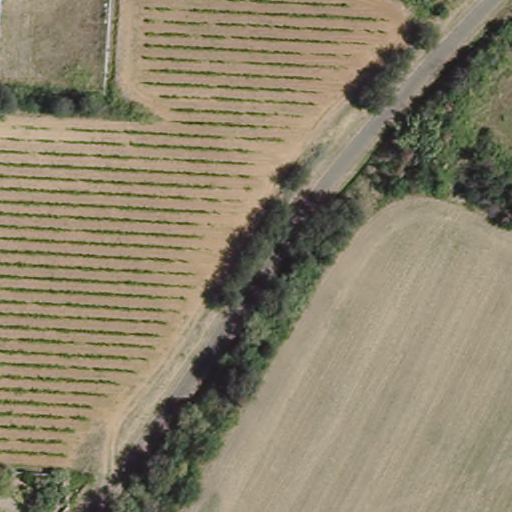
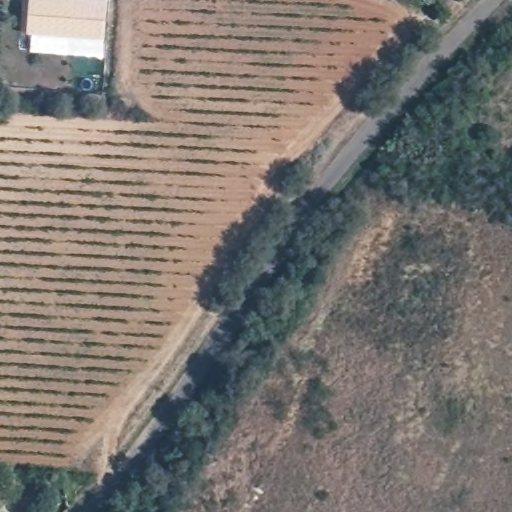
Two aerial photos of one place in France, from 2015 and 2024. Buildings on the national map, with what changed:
new [(100,0),(109,1),(106,40),(29,36),(31,1),(31,0),(100,0)]

